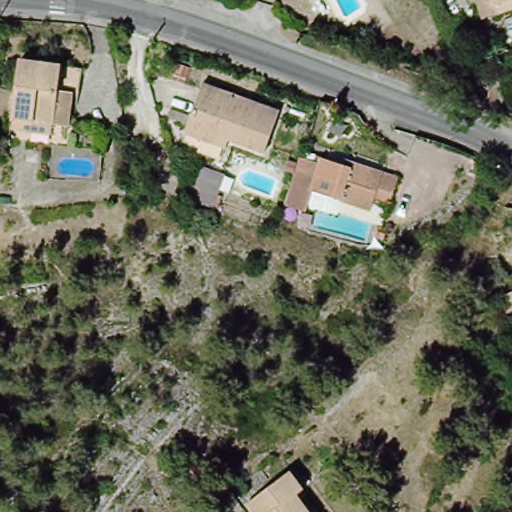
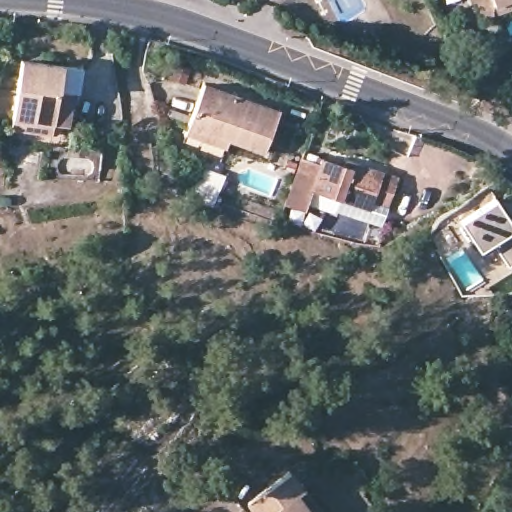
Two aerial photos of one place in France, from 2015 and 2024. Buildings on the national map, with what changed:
unchanged [(477,1),(477,0),(479,0),(477,1)]
unchanged [(489,15),(484,0),(512,0),(512,6),(503,10),(489,15)]
unchanged [(22,60),(75,67),(66,124),(52,122),(51,133),(12,129),(13,117),(22,60)]
unchanged [(477,70),(480,78),(473,81),(470,74),(477,70)]
unchanged [(225,142),(219,156),(181,141),(188,121),(173,116),(170,109),(170,103),(192,111),(204,78),(278,105),(263,148),(227,135),(225,142)]
unchanged [(300,204),(298,211),(280,205),(295,158),(314,164),(316,158),(347,168),(350,162),(392,177),(382,207),(367,203),(365,210),(335,201),(330,214),(300,204)]
new [(512,225),(512,262),(507,265),(492,241),(478,250),(460,222),(494,199),(512,225)]
unchanged [(288,471),(302,488),(294,495),(308,512),(255,512),(247,502),(288,471)]

